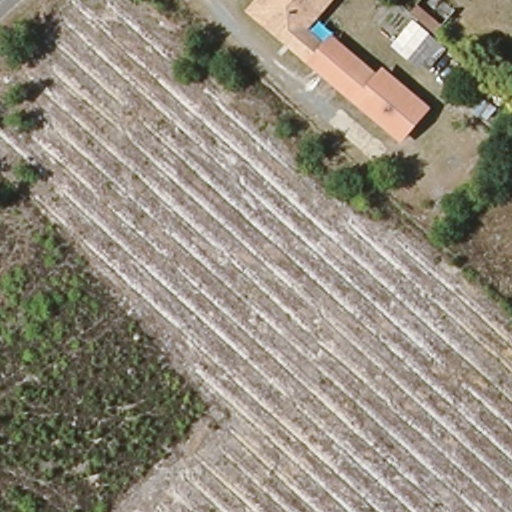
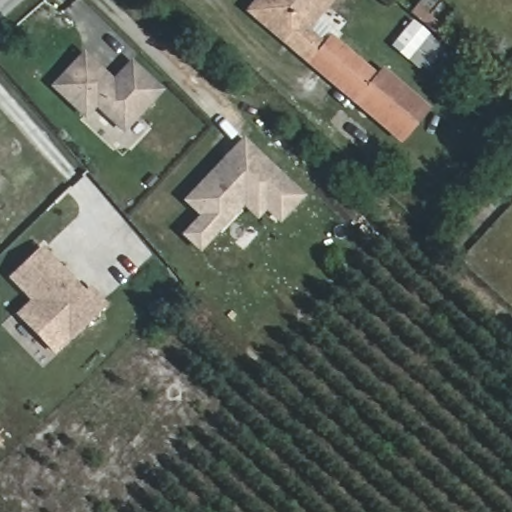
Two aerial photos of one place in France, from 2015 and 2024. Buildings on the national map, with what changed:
unchanged [(323,44),(327,48),(314,64),(257,15),(250,10),(259,0),(330,0),(307,28),(323,44)]
unchanged [(440,27),(434,37),(444,44),(426,61),(396,40),(421,11),(440,27)]
unchanged [(327,48),(323,44),(330,35),(377,72),(381,67),(429,109),(401,141),(314,64),(327,48)]
new [(84,119),(50,85),(84,50),(113,78),(131,59),(164,90),(123,134),(96,107),(84,119)]
new [(183,200),(244,136),(306,196),(279,224),(265,210),(256,220),(242,207),(199,253),(181,235),(199,215),(183,200)]
new [(89,284),(108,303),(68,342),(8,277),(43,245),(84,290),(89,284)]

